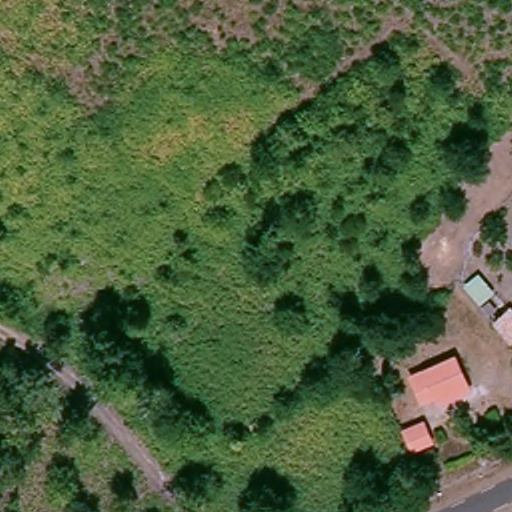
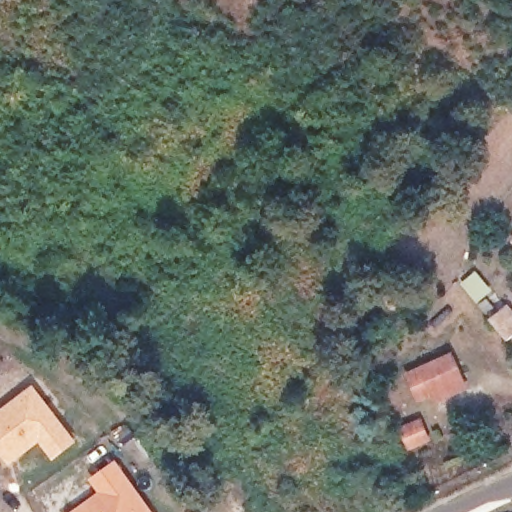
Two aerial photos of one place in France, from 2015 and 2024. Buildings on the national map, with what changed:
unchanged [(489,320),(508,305),(512,309),(512,341),(509,343),(489,320)]
unchanged [(448,355),(459,383),(415,401),(404,374),(448,355)]
new [(0,450),(0,416),(33,390),(75,442),(54,457),(41,440),(17,458),(12,452),(5,457),(0,450)]
new [(100,492),(91,480),(118,460),(154,512),(74,512),(100,492)]

